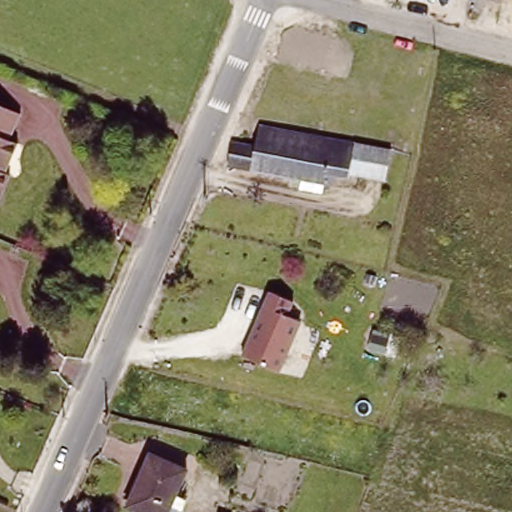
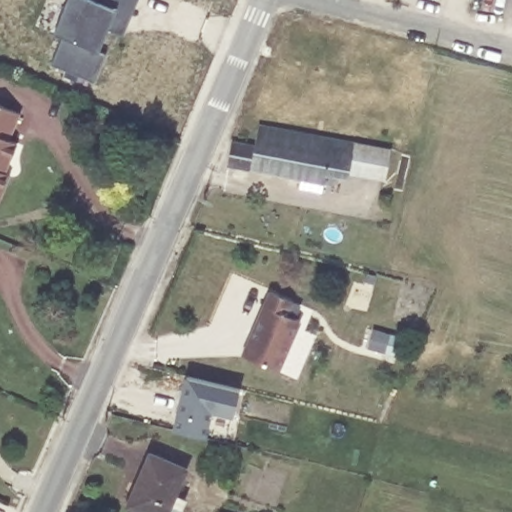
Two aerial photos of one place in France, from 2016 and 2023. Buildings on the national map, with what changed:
new [(122,36),(109,30),(100,51),(106,54),(93,83),(50,66),(62,37),(54,34),(66,0),(137,0),(122,36)]
unchanged [(14,135),(21,139),(14,158),(0,152),(0,100),(24,110),(14,135)]
unchanged [(321,186),(226,165),(232,141),(257,145),(262,125),(372,149),(392,153),(385,183),(367,179),(352,175),(350,181),(335,179),(332,188),(321,186)]
unchanged [(10,168),(15,170),(2,202),(0,201),(0,152),(14,158),(10,168)]
unchanged [(357,264),(359,254),(367,255),(364,266),(357,264)]
unchanged [(294,302),(288,316),(300,321),(280,369),(241,352),(267,290),(294,302)]
new [(234,417),(212,413),(207,436),(172,430),(184,376),(240,389),(234,417)]
unchanged [(149,512),(122,501),(150,448),(190,465),(175,499),(169,512),(149,512)]

